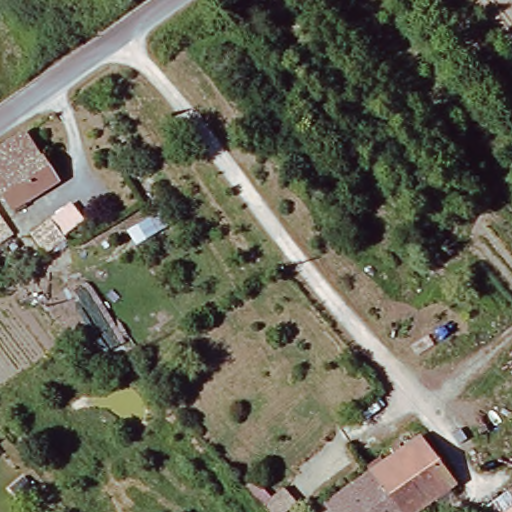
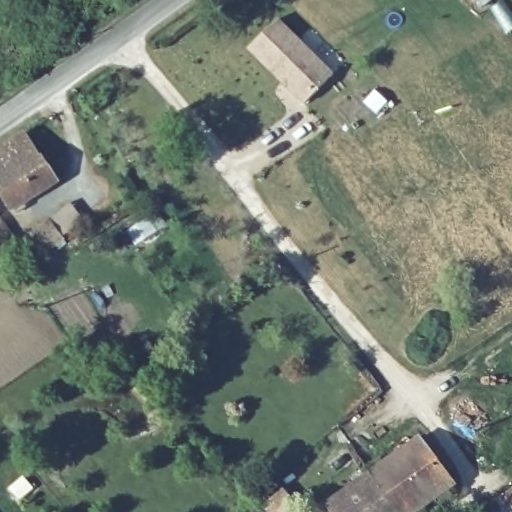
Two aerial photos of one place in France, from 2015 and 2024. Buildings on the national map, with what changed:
new [(278,19),(332,73),(303,103),(246,51),(278,19)]
unchanged [(10,212),(0,195),(0,149),(24,134),(56,184),(10,212)]
unchanged [(46,256),(29,233),(49,219),(66,242),(46,256)]
unchanged [(0,247),(0,222),(12,238),(0,247)]
unchanged [(326,506),(417,438),(455,486),(419,512),(331,512),(326,506)]
unchanged [(19,506),(5,491),(22,477),(36,493),(19,506)]
unchanged [(512,496),(512,512),(504,512),(499,504),(512,496)]

